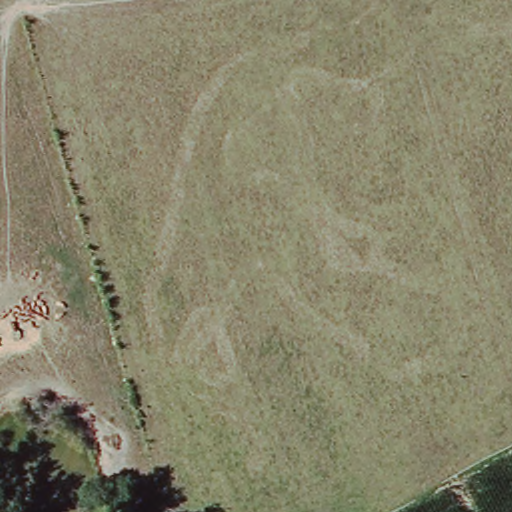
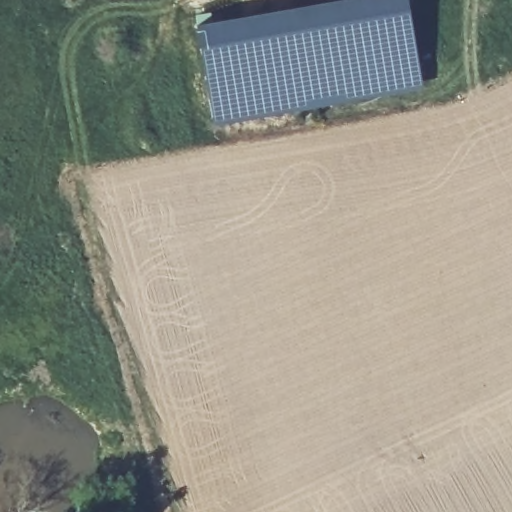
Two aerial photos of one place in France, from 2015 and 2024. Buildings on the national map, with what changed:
new [(365,0),(405,0),(420,92),(213,127),(197,28),(365,0)]

